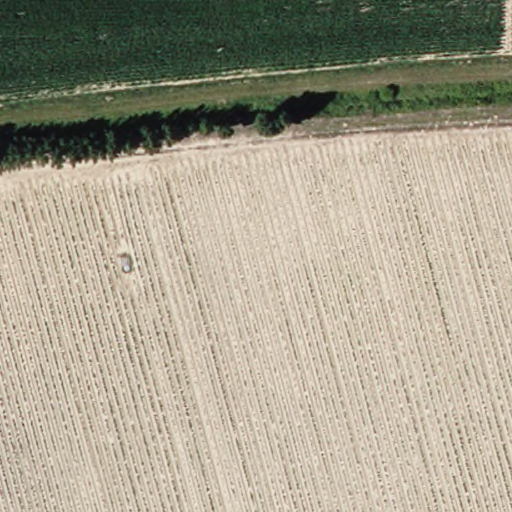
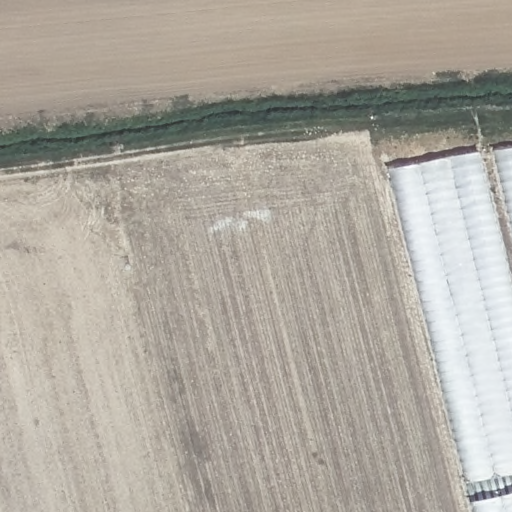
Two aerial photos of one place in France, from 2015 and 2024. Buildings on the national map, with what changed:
new [(512,148),(512,224),(494,152),(512,148)]
new [(512,512),(473,512),(388,170),(481,152),(512,280),(512,512)]

